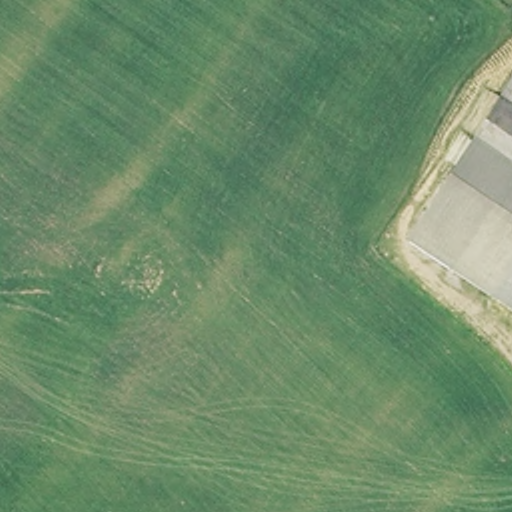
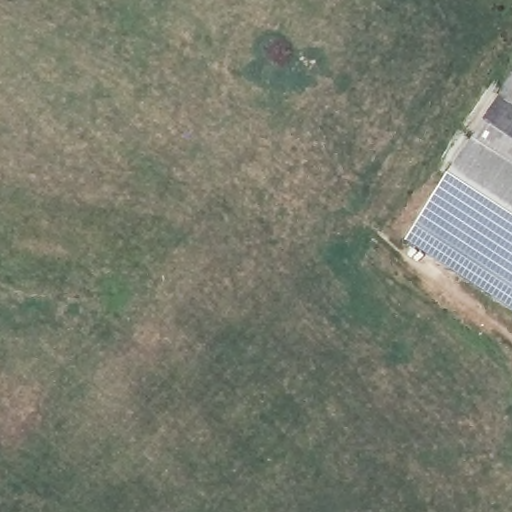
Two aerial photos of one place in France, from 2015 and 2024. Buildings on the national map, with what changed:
unchanged [(512,85),(512,309),(411,239),(491,116),(512,85)]

